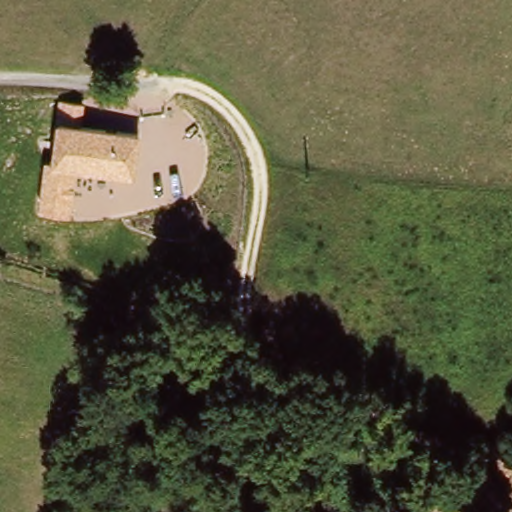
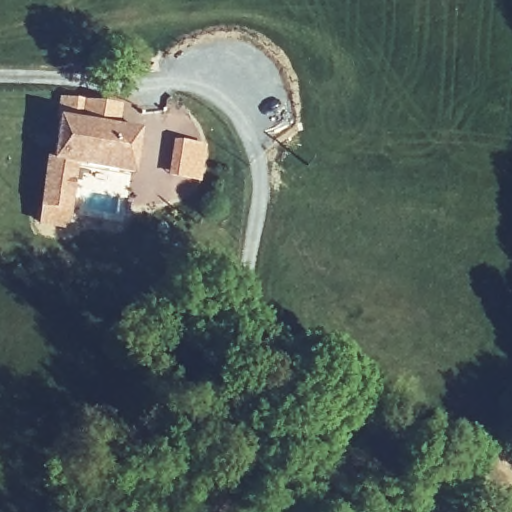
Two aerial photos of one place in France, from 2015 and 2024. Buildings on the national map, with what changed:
unchanged [(80,119),(150,126),(145,175),(78,169),(73,218),(46,215),(60,98),(82,101),(80,119)]
new [(170,174),(175,140),(207,144),(202,179),(170,174)]

